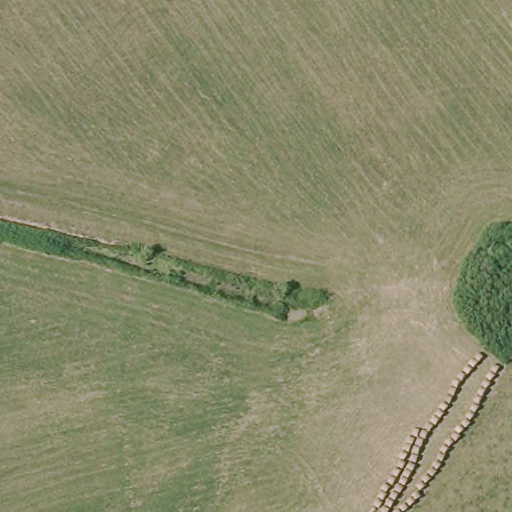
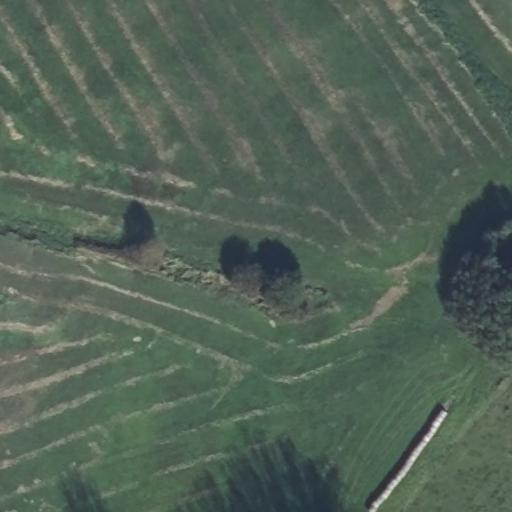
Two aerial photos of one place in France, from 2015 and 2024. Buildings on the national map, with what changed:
[]

